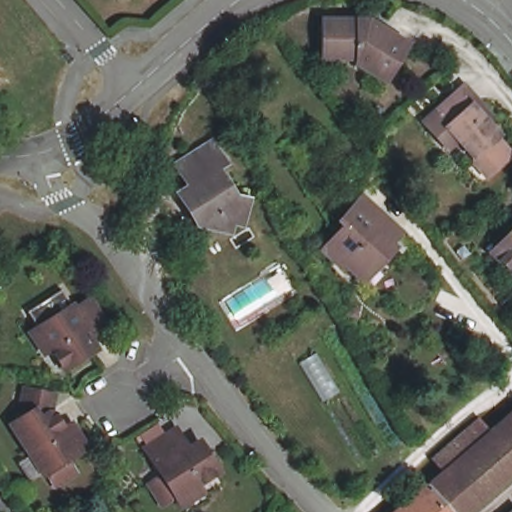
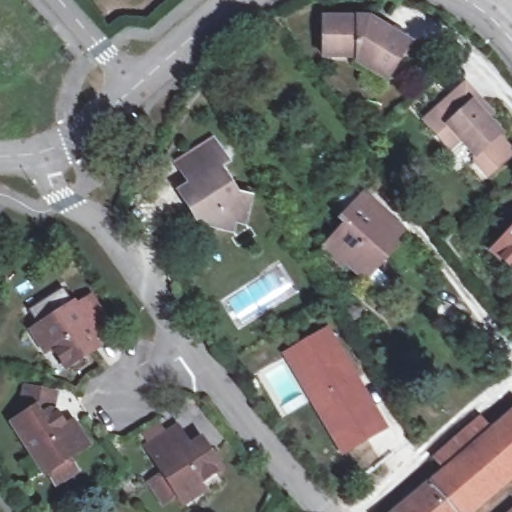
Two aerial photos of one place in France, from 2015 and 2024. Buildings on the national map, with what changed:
demolished [(121,5),(117,0),(128,0),(121,5)]
unchanged [(387,77),(359,61),(361,56),(326,54),(325,16),(370,16),(410,41),(387,77)]
unchanged [(500,137),(505,142),(504,147),(512,156),(512,157),(488,179),(476,165),(477,159),(461,141),(450,151),(425,124),(460,91),(466,86),(493,115),(487,121),(501,136),(500,137)]
unchanged [(220,140),(235,161),(227,166),(246,195),(257,198),(251,224),(242,223),(240,230),(206,221),(187,192),(200,185),(185,163),(220,140)]
unchanged [(360,274),(345,260),(341,264),(323,248),(345,223),(340,220),(362,195),(400,228),(390,240),(393,244),(377,263),(365,278),(360,274)]
unchanged [(510,242),(512,240),(512,244),(510,242)]
unchanged [(503,259),(512,250),(512,267),(503,259)]
unchanged [(94,356),(67,373),(52,352),(45,357),(33,337),(40,332),(30,317),(63,295),(73,311),(76,314),(90,305),(107,332),(91,342),(99,353),(94,356)]
new [(340,452),(283,351),(326,326),(385,428),(340,452)]
demolished [(313,346),(376,462),(359,471),(298,355),(313,346)]
unchanged [(88,445),(80,449),(68,456),(77,470),(57,483),(48,468),(45,471),(16,423),(25,418),(21,413),(27,386),(55,392),(52,410),(60,412),(68,427),(75,423),(88,445)]
unchanged [(482,497),(485,501),(486,504),(476,512),(403,512),(452,470),(440,456),(485,420),(495,432),(512,419),(512,472),(482,497)]
unchanged [(184,500),(180,492),(177,490),(162,500),(150,480),(165,471),(157,458),(159,456),(150,442),(180,423),(192,442),(204,435),(207,439),(223,465),(198,480),(203,488),(184,500)]

